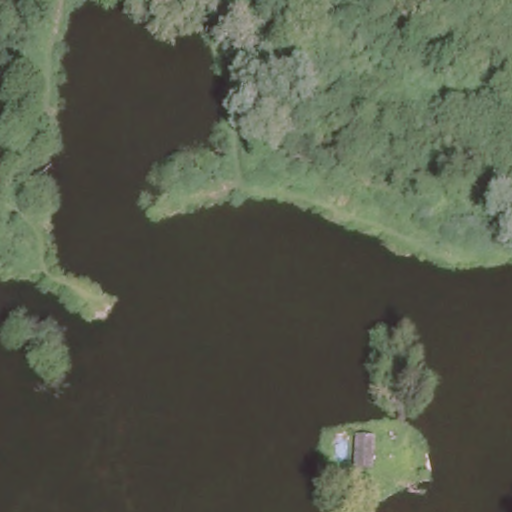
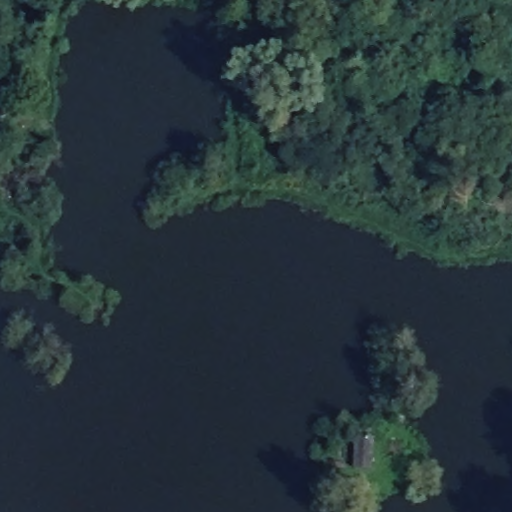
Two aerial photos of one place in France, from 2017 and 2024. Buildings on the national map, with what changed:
unchanged [(356,436),(373,441),(366,471),(349,466),(356,436)]

